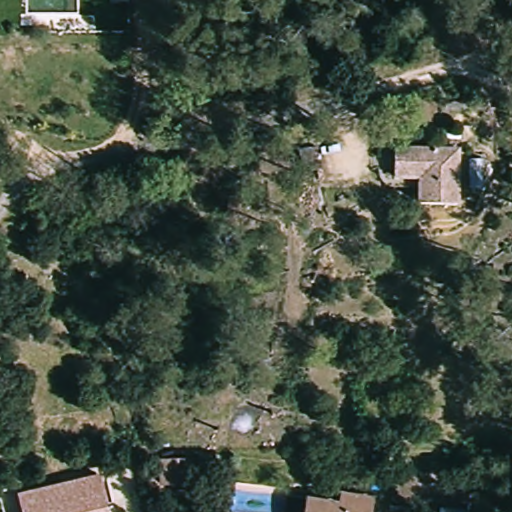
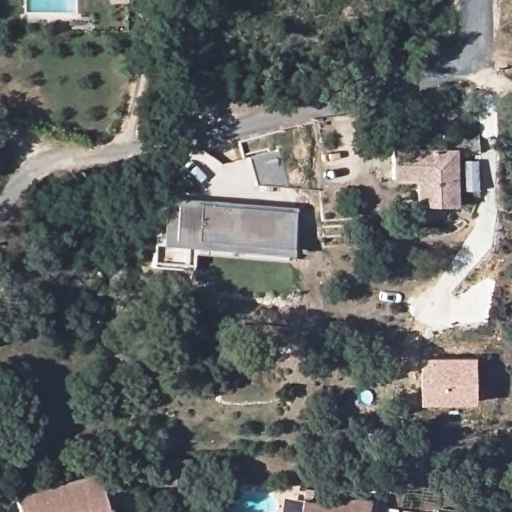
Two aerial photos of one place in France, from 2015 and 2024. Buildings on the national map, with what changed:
new [(280,150),(292,186),(259,186),(250,159),(280,150)]
unchanged [(414,209),(413,182),(389,182),(389,152),(451,153),(452,208),(414,209)]
new [(170,195),(206,199),(206,202),(216,202),(216,199),(234,201),(234,205),(301,212),(298,249),(222,242),(224,222),(204,220),(204,229),(180,227),(182,206),(170,204),(170,195)]
new [(170,204),(182,206),(180,227),(204,229),(204,220),(224,222),(222,242),(221,248),(165,242),(170,204)]
new [(423,402),(422,358),(477,357),(478,402),(423,402)]
unchanged [(109,482),(110,512),(25,512),(24,484),(109,482)]
unchanged [(335,505),(336,497),(371,502),(369,512),(301,512),(302,500),(335,505)]

